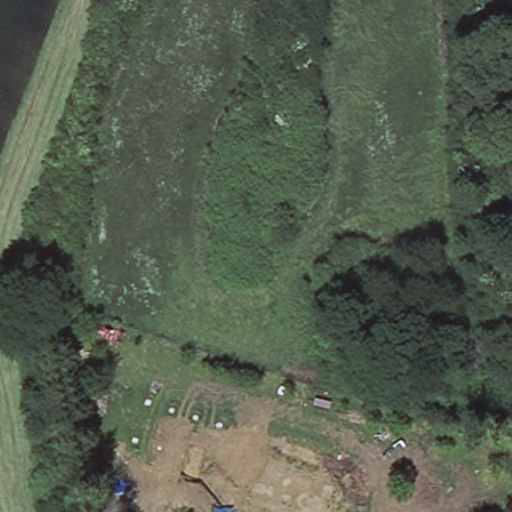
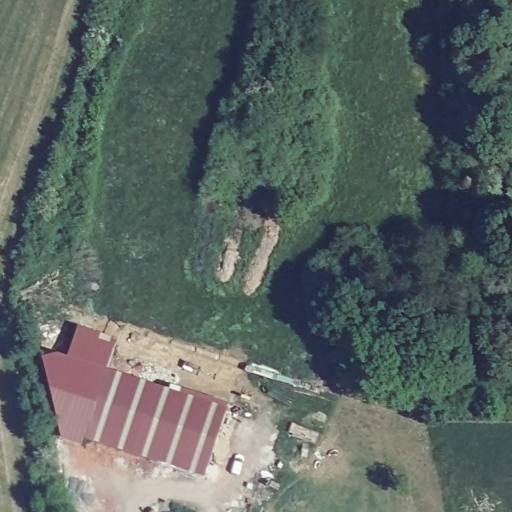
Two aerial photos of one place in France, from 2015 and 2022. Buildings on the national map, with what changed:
new [(83,440),(60,433),(43,357),(56,351),(67,355),(78,323),(117,337),(107,368),(83,440)]
new [(204,479),(83,440),(107,368),(227,409),(204,479)]

